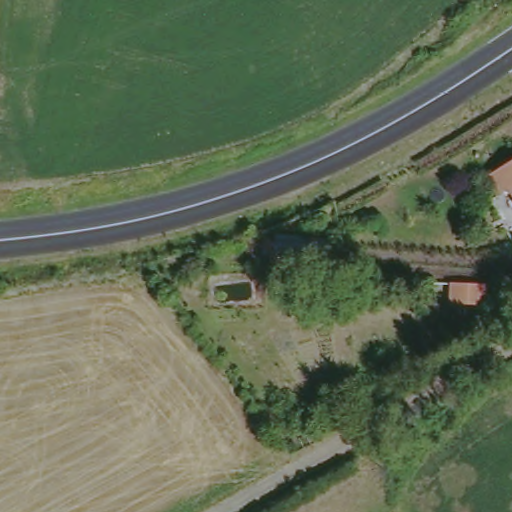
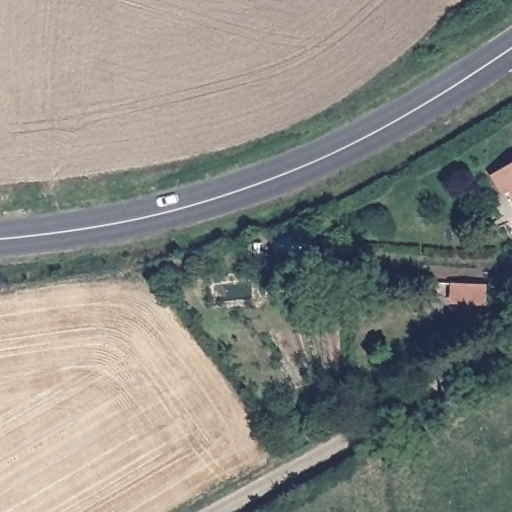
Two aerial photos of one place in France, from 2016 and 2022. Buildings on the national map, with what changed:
unchanged [(512,167),(512,193),(500,173),(512,167)]
unchanged [(456,300),(489,300),(490,318),(456,319),(456,300)]

